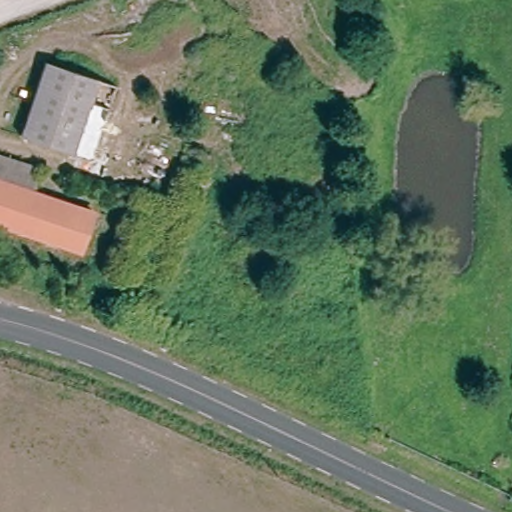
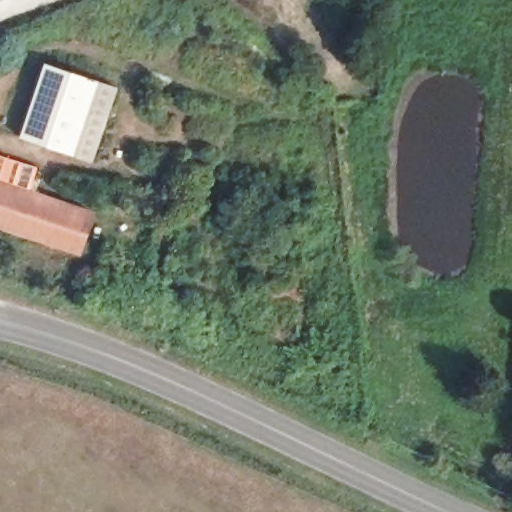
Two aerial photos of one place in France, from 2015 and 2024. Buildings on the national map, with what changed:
unchanged [(114,100),(100,142),(81,137),(73,163),(23,146),(45,77),(46,71),(97,87),(95,94),(110,98),(114,100)]
unchanged [(0,231),(0,166),(20,171),(15,188),(91,213),(77,255),(0,231)]

